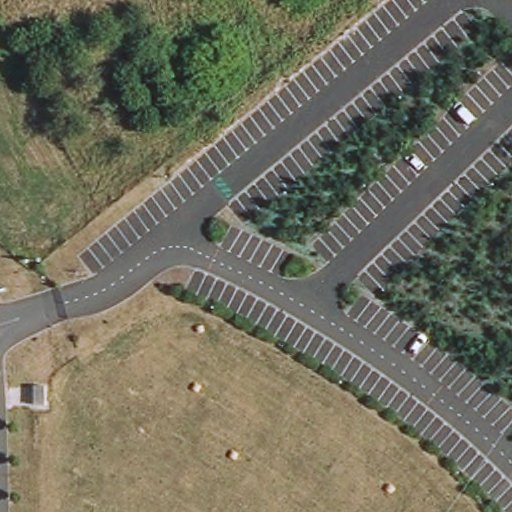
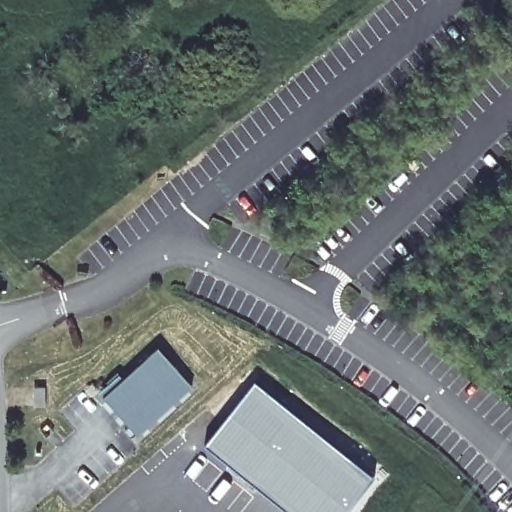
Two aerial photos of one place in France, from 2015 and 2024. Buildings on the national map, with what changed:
unchanged [(105,395),(100,392),(121,375),(124,377),(159,347),(192,386),(137,433),(105,395)]
new [(375,476),(347,512),(289,512),(205,445),(255,381),(375,476)]

